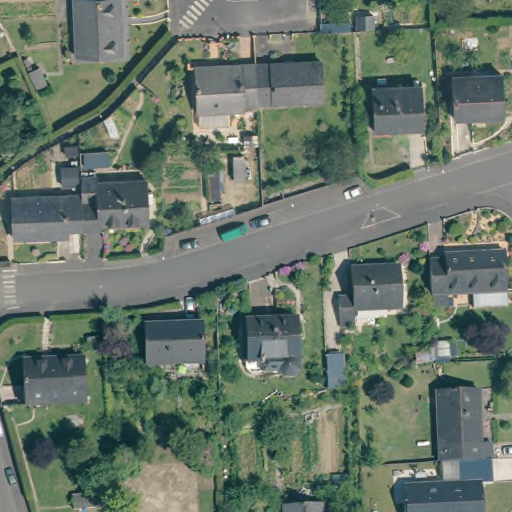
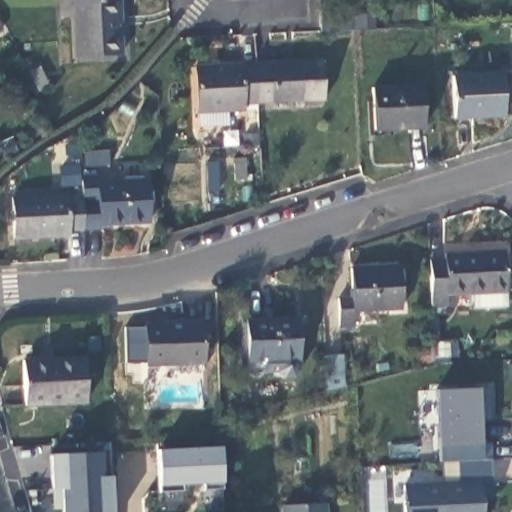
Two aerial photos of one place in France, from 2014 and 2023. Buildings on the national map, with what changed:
unchanged [(82,58),(80,0),(123,0),(126,56),(82,58)]
unchanged [(320,60),(322,99),(257,102),(255,63),(320,60)]
unchanged [(198,127),(197,111),(195,66),(255,63),(257,102),(244,103),(244,109),(229,110),(229,126),(198,127)]
unchanged [(504,115),(453,118),(451,76),(501,74),(504,115)]
unchanged [(422,85),(424,127),(374,130),(372,88),(422,85)]
unchanged [(81,194),(80,176),(96,175),(96,182),(146,180),(149,222),(99,224),(99,228),(83,229),(81,194)]
unchanged [(83,229),(68,230),(68,235),(14,238),(11,197),(81,194),(83,229)]
unchanged [(445,259),(445,254),(505,252),(506,292),(448,294),(448,306),(432,307),(430,259),(445,259)]
unchanged [(400,266),(402,308),(355,310),(355,325),(340,326),(339,298),(353,297),(351,268),(400,266)]
unchanged [(248,362),(246,321),(295,320),(297,369),(292,374),(280,374),(276,370),(264,370),(263,361),(248,362)]
unchanged [(203,362),(147,364),(145,325),(201,323),(203,362)]
unchanged [(342,356),(343,386),(327,390),(326,356),(342,356)]
unchanged [(86,402),(25,405),(23,360),(85,357),(86,402)]
unchanged [(480,460),(440,462),(437,391),(478,390),(480,444),(490,444),(491,460),(480,460)]
new [(220,448),(222,490),(203,491),(202,484),(182,484),(182,492),(159,493),(157,450),(220,448)]
new [(50,454),(101,452),(102,477),(111,476),(113,512),(63,512),(62,489),(51,489),(50,454)]
unchanged [(404,486),(480,483),(482,512),(405,512),(404,486)]
demolished [(75,509),(74,497),(106,493),(107,505),(75,509)]
unchanged [(289,505),(329,504),(329,512),(289,512),(289,505)]

